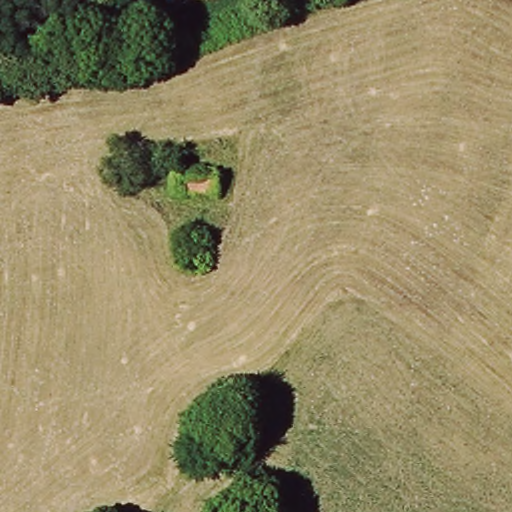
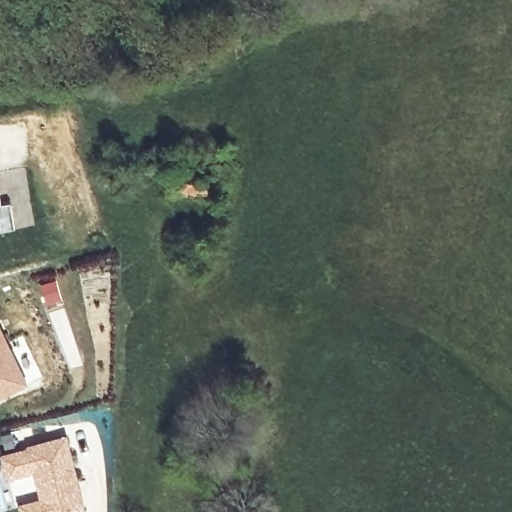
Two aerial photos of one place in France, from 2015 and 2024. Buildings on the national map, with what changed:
new [(1,207),(10,205),(14,231),(0,234),(0,204),(1,207)]
new [(22,387),(3,396),(0,398),(0,341),(22,387)]
new [(81,494),(84,512),(20,512),(18,504),(39,498),(32,476),(8,482),(0,456),(0,454),(66,435),(81,494)]

